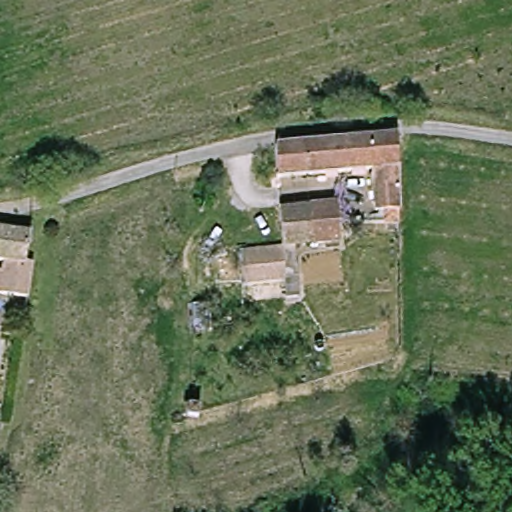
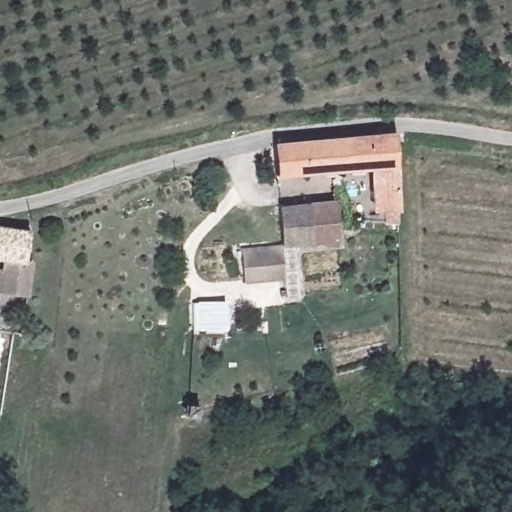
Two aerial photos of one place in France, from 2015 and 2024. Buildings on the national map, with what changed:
unchanged [(395,223),(373,222),(369,170),(274,178),(272,146),(274,146),(390,135),(395,135),(395,223)]
unchanged [(279,246),(276,210),(307,208),(332,207),(337,242),(308,244),(295,245),(279,246)]
unchanged [(8,261),(0,260),(0,229),(29,233),(33,233),(28,262),(34,263),(29,297),(21,296),(2,293),(0,293),(0,271),(6,271),(8,261)]
unchanged [(295,245),(298,279),(243,285),(241,252),(279,246),(295,245)]
unchanged [(190,424),(192,407),(202,405),(201,421),(190,424)]

